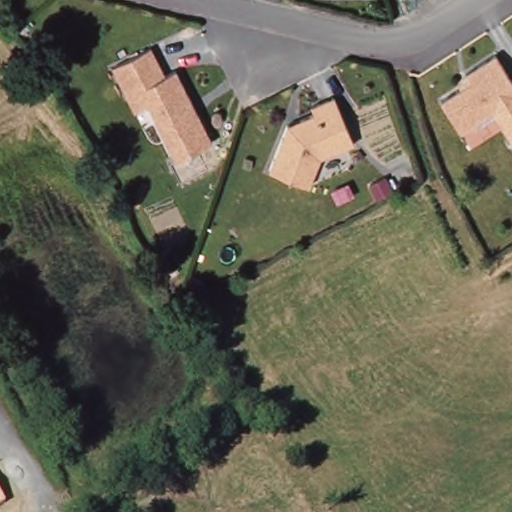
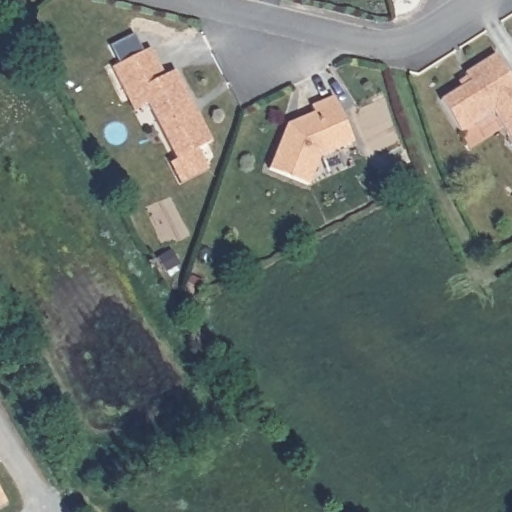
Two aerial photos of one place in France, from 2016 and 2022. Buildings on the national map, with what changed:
unchanged [(214,139),(179,157),(151,102),(137,109),(129,94),(115,65),(153,46),(169,77),(180,72),(196,102),(200,111),(214,139)]
unchanged [(495,110),(463,130),(444,99),(463,87),(461,82),(471,77),(468,72),(498,54),(512,76),(512,137),(495,110)]
unchanged [(314,103),(336,93),(356,138),(323,152),(312,181),(273,166),(290,121),(302,116),(317,110),(314,103)]
unchanged [(0,507),(0,493),(6,503),(0,507)]

